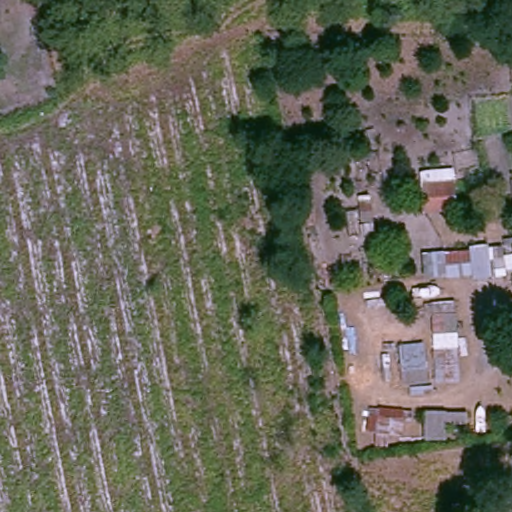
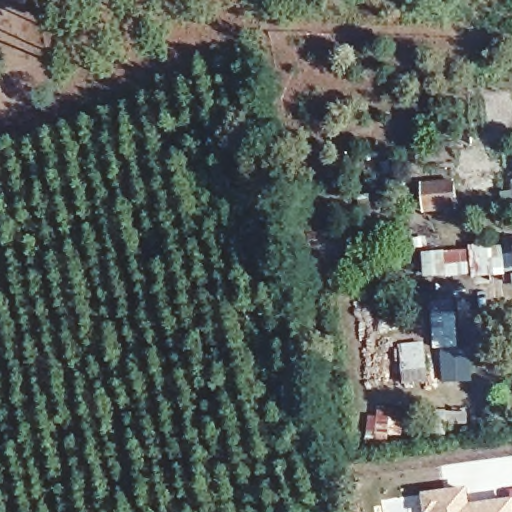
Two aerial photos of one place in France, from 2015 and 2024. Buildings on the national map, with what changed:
unchanged [(449,214),(421,217),(415,166),(444,164),(449,214)]
unchanged [(415,248),(440,248),(439,243),(465,240),(466,249),(494,245),(497,266),(485,267),(485,271),(469,273),(469,268),(443,272),(443,269),(414,270),(415,248)]
unchanged [(512,246),(512,248),(511,246),(512,246)]
unchanged [(497,253),(512,251),(512,265),(499,267),(497,253)]
unchanged [(452,378),(426,379),(426,331),(451,330),(452,378)]
unchanged [(460,427),(415,425),(415,407),(459,408),(460,427)]
new [(470,504),(512,498),(512,512),(424,512),(421,493),(467,487),(470,504)]

